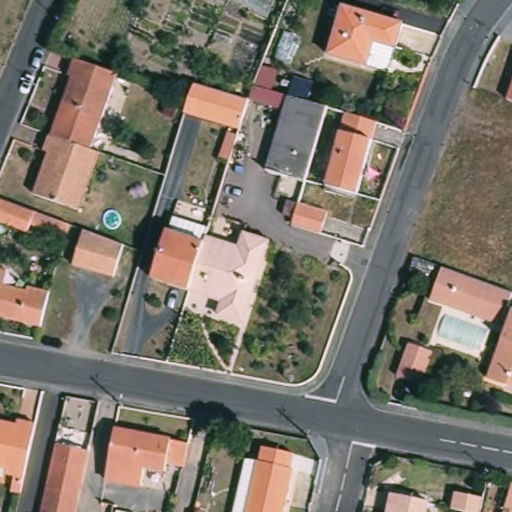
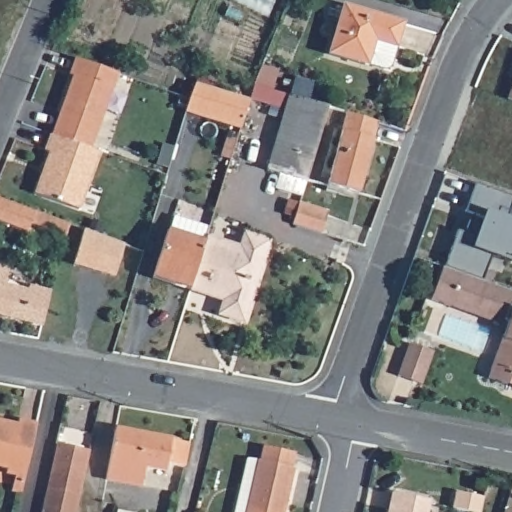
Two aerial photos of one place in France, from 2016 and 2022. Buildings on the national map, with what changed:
unchanged [(407,25),(393,73),(330,56),(345,8),(407,25)]
unchanged [(90,151),(51,137),(72,79),(70,77),(76,60),(119,76),(90,151)]
unchanged [(506,100),(512,84),(512,102),(506,100)]
unchanged [(184,116),(187,103),(192,87),(247,104),(239,132),(184,116)]
unchanged [(268,169),(292,94),(330,104),(308,181),(268,169)]
unchanged [(339,135),(345,115),(376,126),(372,142),(357,197),(325,189),(339,135)]
unchanged [(78,214),(35,199),(50,156),(45,154),(51,137),(90,151),(100,154),(78,214)]
new [(496,254),(487,280),(447,266),(460,229),(468,231),(472,219),(483,223),(486,216),(468,210),(478,181),(512,194),(512,214),(510,217),(512,218),(512,260),(496,254)]
new [(297,201),(326,210),(320,232),(290,223),(297,201)]
unchanged [(30,237),(0,226),(0,202),(37,214),(64,224),(60,236),(34,227),(30,237)]
unchanged [(154,283),(176,219),(212,231),(210,239),(192,295),(154,283)]
unchanged [(115,280),(78,266),(90,231),(129,245),(115,280)]
unchanged [(243,250),(248,234),(273,242),(246,328),(221,319),(225,305),(192,295),(210,239),(243,250)]
unchanged [(510,310),(512,311),(512,377),(510,383),(491,377),(510,326),(495,320),(454,305),(435,299),(447,265),(507,287),(512,289),(512,306),(510,310)]
unchanged [(0,273),(5,274),(2,287),(25,293),(27,289),(49,295),(40,330),(0,321),(0,273)]
unchanged [(408,342),(435,349),(425,383),(398,375),(408,342)]
unchanged [(9,473),(10,468),(0,466),(0,419),(20,423),(21,419),(39,422),(27,476),(24,492),(13,489),(16,474),(9,473)]
unchanged [(170,468),(169,475),(149,471),(145,488),(109,481),(119,433),(192,447),(190,462),(187,471),(170,468)]
unchanged [(90,454),(77,512),(45,512),(59,445),(90,454)]
unchanged [(238,512),(250,462),(260,464),(299,473),(290,512),(238,512)]
unchanged [(505,509),(512,485),(512,512),(505,509)]
unchanged [(455,489),(482,496),(479,512),(471,512),(450,507),(455,489)]
unchanged [(384,510),(389,491),(427,501),(426,512),(391,512),(391,511),(384,510)]

